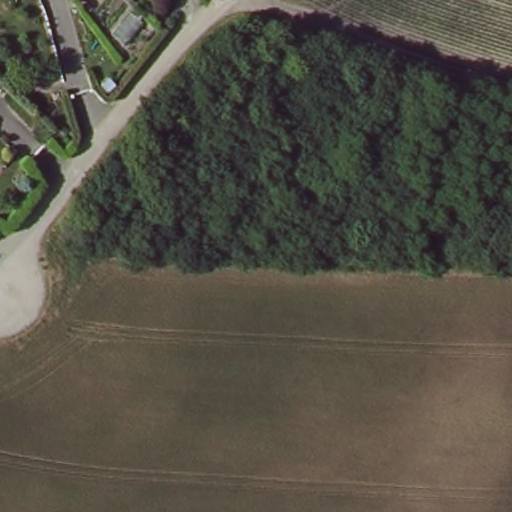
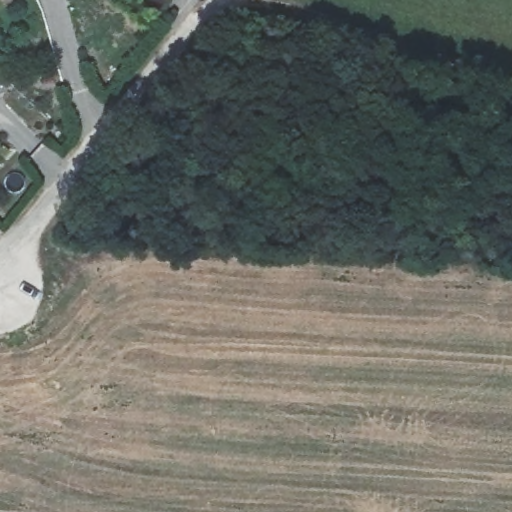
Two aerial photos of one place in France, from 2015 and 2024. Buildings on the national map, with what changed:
[]

